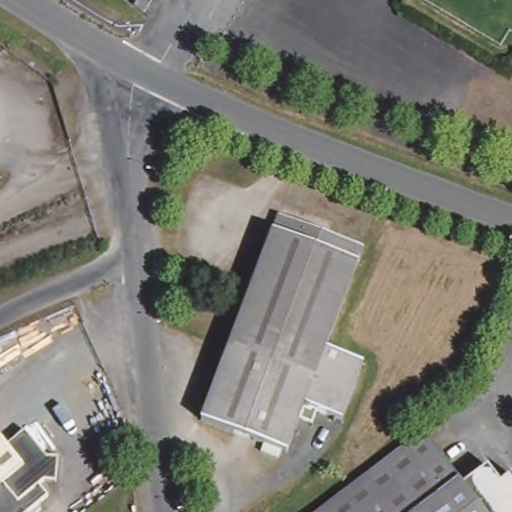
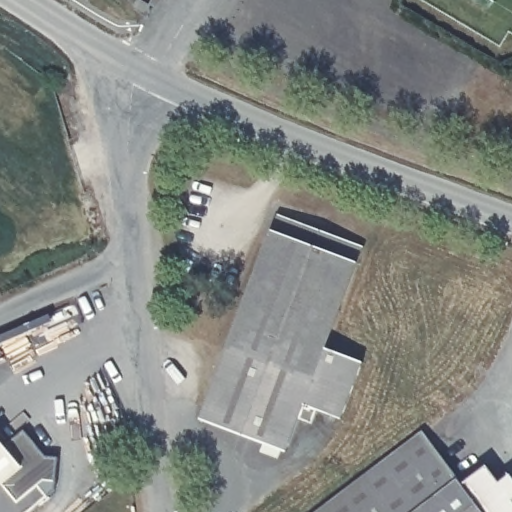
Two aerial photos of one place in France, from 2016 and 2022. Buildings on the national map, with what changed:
unchanged [(144,13),(134,6),(138,0),(139,0),(149,5),(144,13)]
unchanged [(277,214),(365,248),(326,349),(362,363),(342,419),(317,411),(312,424),(300,419),(287,453),(282,451),(280,459),(262,452),(265,444),(201,421),(277,214)]
unchanged [(5,446),(24,431),(46,457),(57,458),(56,482),(45,481),(39,484),(48,496),(29,512),(0,512),(0,440),(5,446)]
unchanged [(423,432),(458,479),(415,512),(315,512),(423,432)]
unchanged [(487,466),(500,483),(511,474),(512,477),(512,512),(415,512),(458,479),(462,484),(487,466)]

